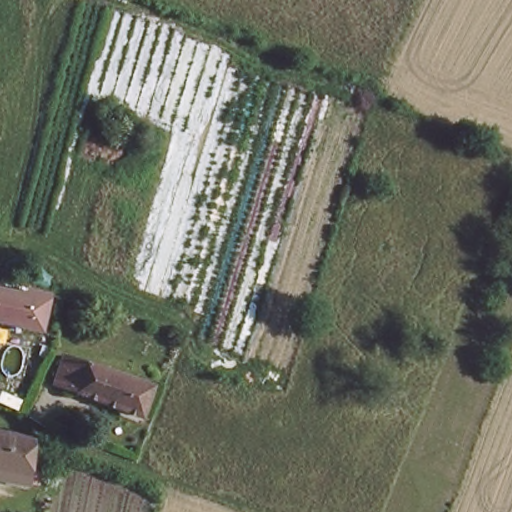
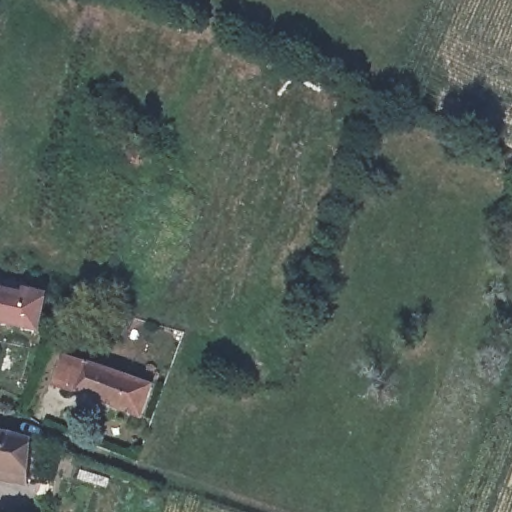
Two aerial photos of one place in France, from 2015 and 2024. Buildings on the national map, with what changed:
unchanged [(37,299),(38,291),(55,296),(50,328),(0,315),(0,289),(37,299)]
unchanged [(59,390),(69,357),(155,382),(144,413),(59,390)]
unchanged [(31,442),(27,474),(0,470),(0,432),(12,434),(31,442)]

